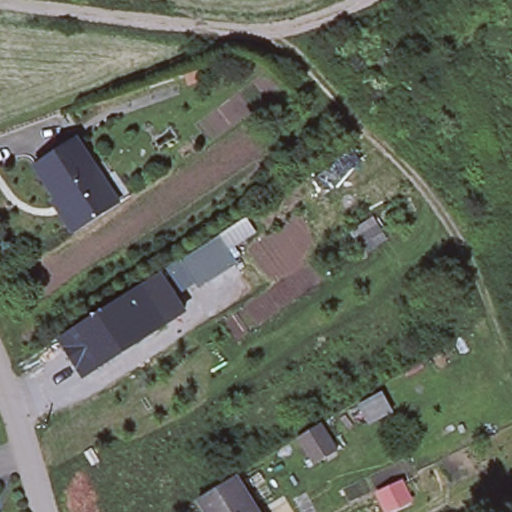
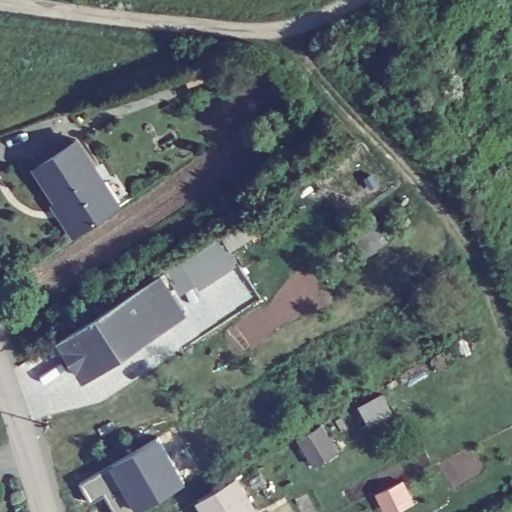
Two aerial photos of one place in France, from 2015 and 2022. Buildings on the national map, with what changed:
unchanged [(56,199),(35,166),(74,140),(92,168),(101,163),(125,200),(117,205),(82,229),(73,234),(52,202),(56,199)]
unchanged [(157,263),(190,308),(86,381),(57,337),(157,263)]
unchanged [(335,414),(384,388),(402,419),(350,444),(335,414)]
unchanged [(337,449),(315,464),(297,436),(321,422),(337,449)]
new [(188,479),(142,505),(142,508),(135,512),(118,512),(106,492),(92,500),(82,481),(112,464),(162,434),(188,479)]
unchanged [(197,498),(235,475),(257,512),(206,512),(197,498)]

